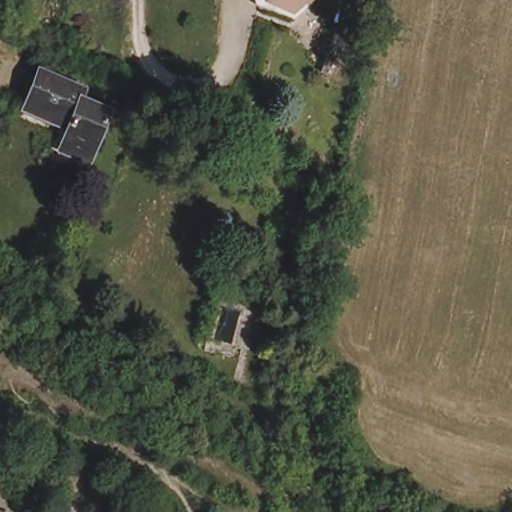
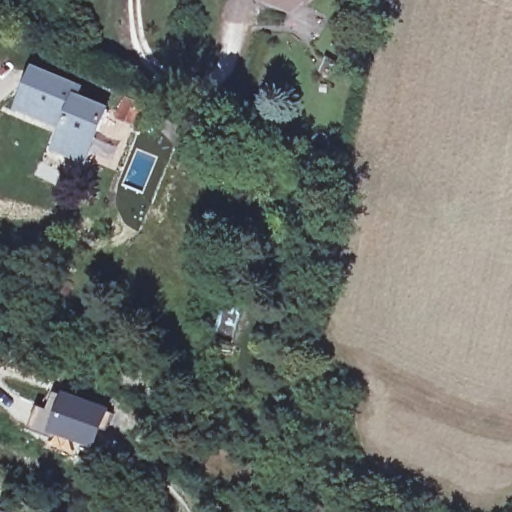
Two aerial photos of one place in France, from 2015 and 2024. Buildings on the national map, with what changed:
unchanged [(88,165),(57,152),(65,132),(20,113),(35,75),(83,94),(78,104),(108,115),(88,165)]
unchanged [(136,123),(120,117),(126,102),(142,108),(136,123)]
new [(39,406),(49,410),(53,401),(56,403),(63,392),(113,409),(97,451),(30,427),(39,406)]

